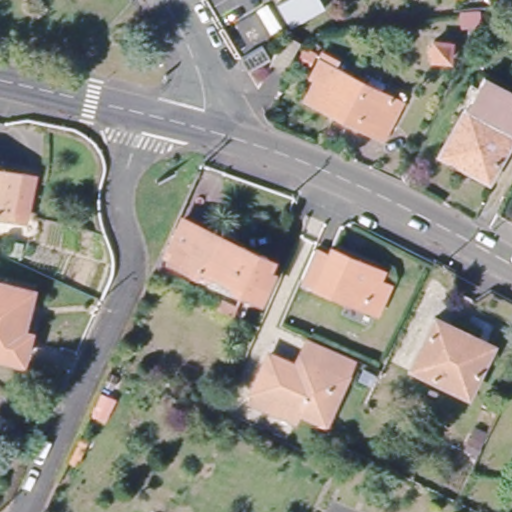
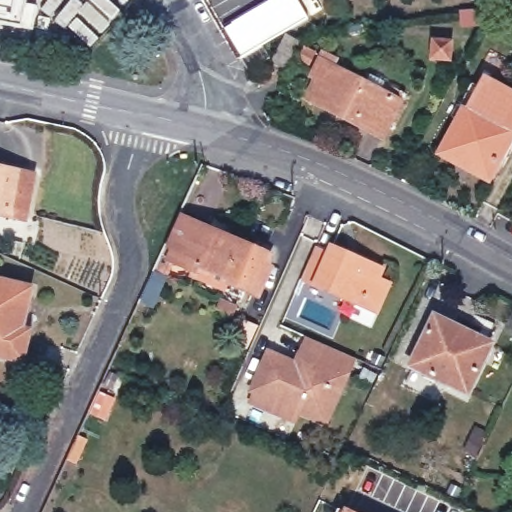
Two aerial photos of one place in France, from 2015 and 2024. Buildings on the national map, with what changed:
new [(40,7),(38,12),(33,31),(0,25),(0,0),(32,0),(32,4),(40,7)]
unchanged [(298,42),(287,65),(271,57),(282,33),(298,42)]
unchanged [(458,40),(456,57),(439,55),(442,37),(458,40)]
unchanged [(318,44),(312,57),(301,52),(308,39),(318,44)]
unchanged [(262,40),(271,52),(250,66),(242,52),(262,40)]
unchanged [(326,47),(338,54),(336,61),(403,98),(385,133),(319,97),(311,92),(320,72),(314,69),(326,47)]
unchanged [(486,79),(512,92),(512,140),(492,179),(447,155),(486,79)]
unchanged [(27,177),(16,225),(0,220),(0,170),(27,177)]
unchanged [(177,248),(172,244),(184,220),(267,258),(252,290),(204,268),(202,273),(172,260),(177,248)]
unchanged [(333,256),(336,251),(382,272),(378,280),(390,286),(378,312),(306,280),(319,250),(333,256)]
unchanged [(0,355),(0,284),(24,290),(32,292),(26,317),(34,319),(30,336),(27,335),(20,361),(0,355)]
unchanged [(488,347),(463,396),(407,367),(432,319),(488,347)]
unchanged [(249,400),(254,389),(269,355),(295,366),(308,338),(352,359),(326,421),(298,410),(293,421),(249,400)]
unchanged [(120,399),(111,419),(92,410),(101,390),(120,399)]
new [(337,508),(344,511),(346,508),(353,512),(335,512),(337,508)]

